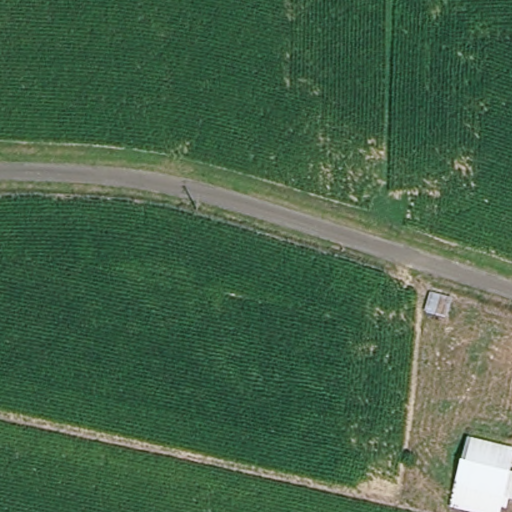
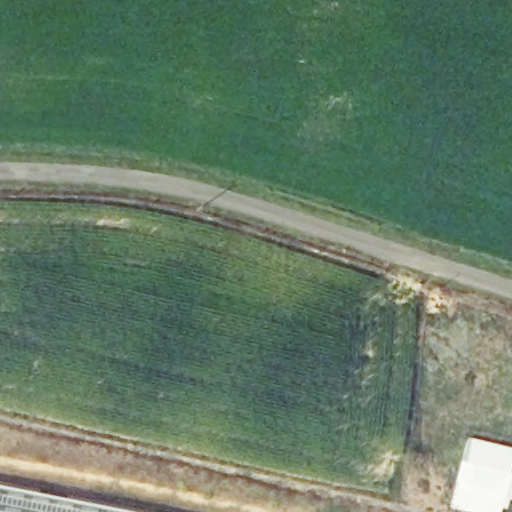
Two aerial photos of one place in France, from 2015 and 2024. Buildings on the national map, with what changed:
unchanged [(508,495),(505,512),(490,512),(455,505),(470,435),(512,443),(512,496),(508,495)]
new [(0,512),(0,488),(120,512),(0,512)]

